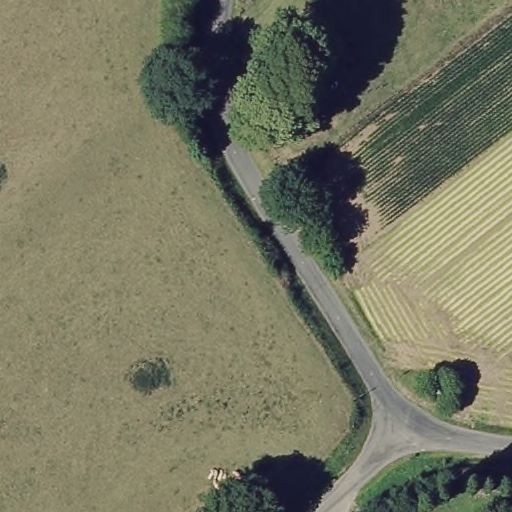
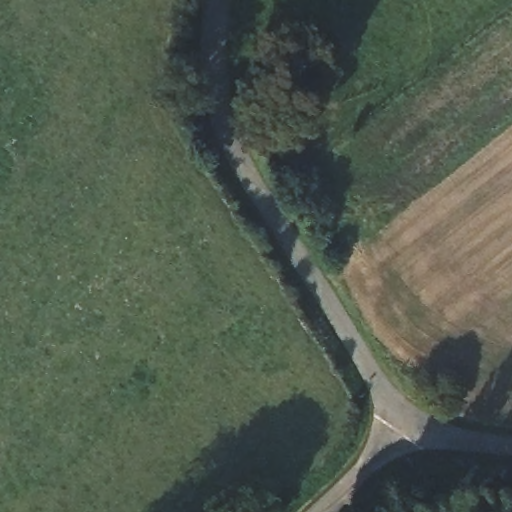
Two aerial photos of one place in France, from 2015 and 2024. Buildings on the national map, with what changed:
[]

